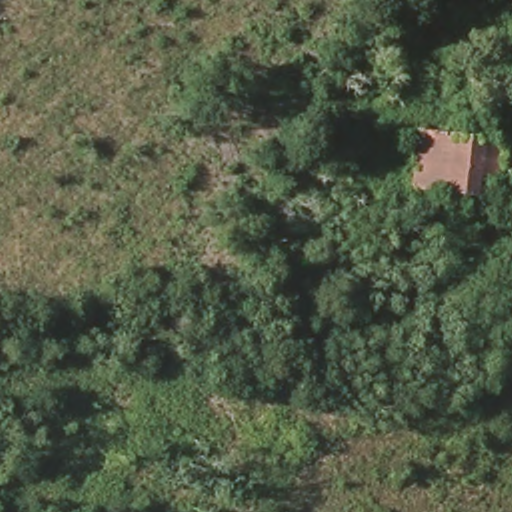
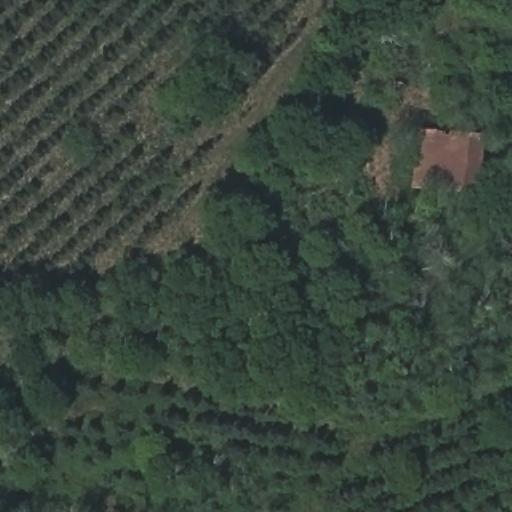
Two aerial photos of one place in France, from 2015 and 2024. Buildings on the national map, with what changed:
unchanged [(403,189),(405,144),(506,153),(507,198),(403,189)]

